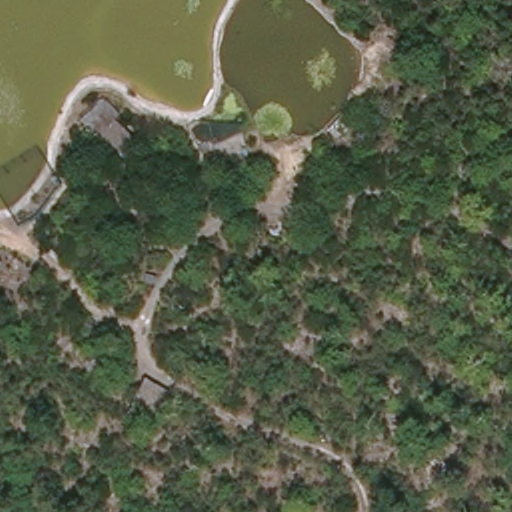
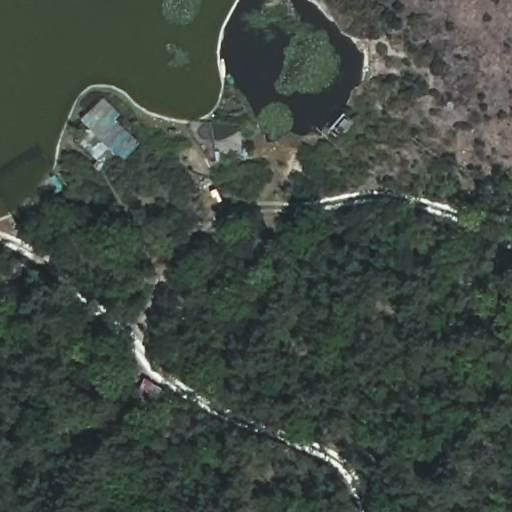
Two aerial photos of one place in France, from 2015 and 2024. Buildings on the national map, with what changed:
unchanged [(116,120),(137,143),(121,161),(80,120),(104,96),(120,114),(116,120)]

